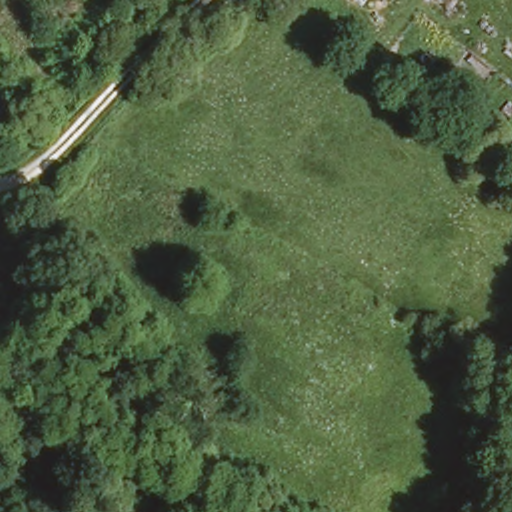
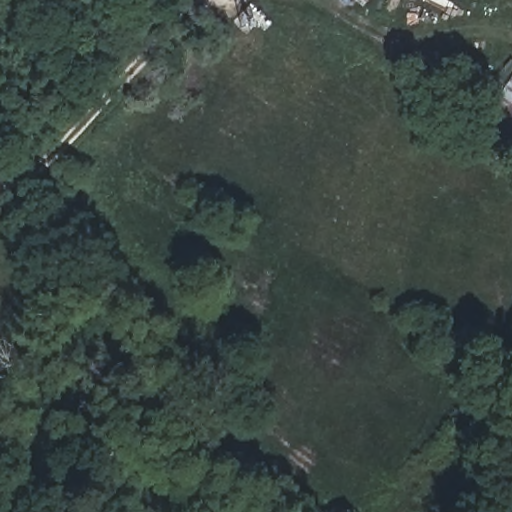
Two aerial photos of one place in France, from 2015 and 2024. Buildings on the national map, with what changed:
unchanged [(362,7),(355,0),(367,0),(362,7)]

